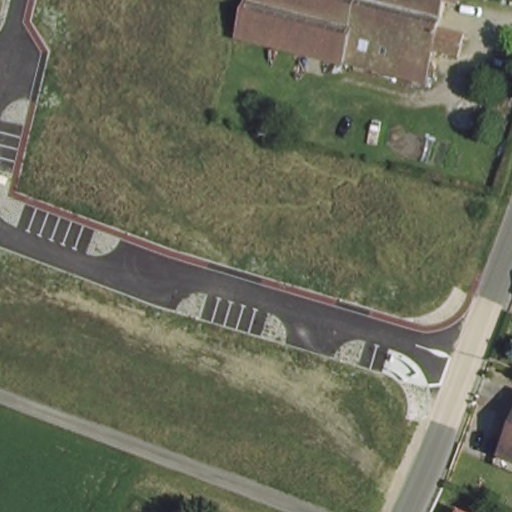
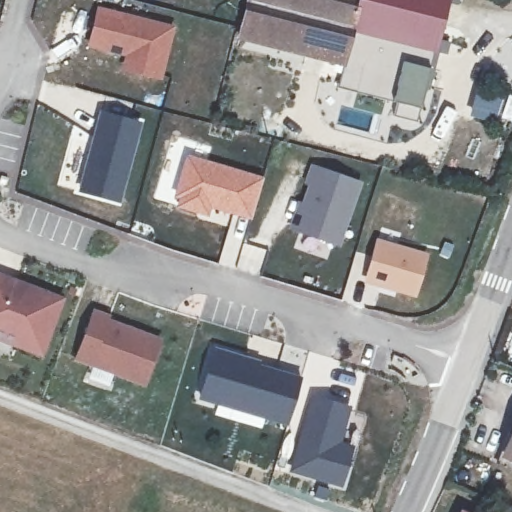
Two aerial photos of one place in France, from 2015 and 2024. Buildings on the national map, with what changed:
new [(417,121),(393,116),(393,101),(338,89),(343,68),(235,40),(246,0),(448,0),(419,108),(417,121)]
demolished [(447,0),(441,25),(467,31),(462,52),(435,46),(425,79),(303,50),(241,34),(237,34),(245,0),(447,0)]
demolished [(449,0),(458,0),(458,2),(449,0)]
new [(97,5),(176,25),(162,80),(119,70),(122,57),(86,49),(97,5)]
new [(81,191),(102,113),(138,123),(116,201),(81,191)]
new [(211,209),(209,217),(177,206),(177,197),(173,196),(186,154),(263,179),(251,221),(211,209)]
new [(289,230),(310,164),(363,182),(340,247),(289,230)]
new [(364,282),(376,237),(427,254),(415,298),(364,282)]
new [(64,298),(42,357),(0,342),(0,274),(64,298)]
new [(92,308),(110,315),(108,320),(162,339),(144,387),(73,360),(92,308)]
new [(199,396),(213,348),(248,358),(246,362),(255,365),(299,378),(286,421),(263,415),(216,401),(199,396)]
new [(246,362),(248,358),(256,361),(255,365),(246,362)]
new [(297,430),(309,391),(352,405),(343,442),(356,446),(344,489),(331,485),(327,500),(314,497),(318,481),(288,472),(297,430)]
unchanged [(512,429),(512,460),(501,456),(512,429)]
unchanged [(455,511),(457,512),(454,512),(455,511)]

